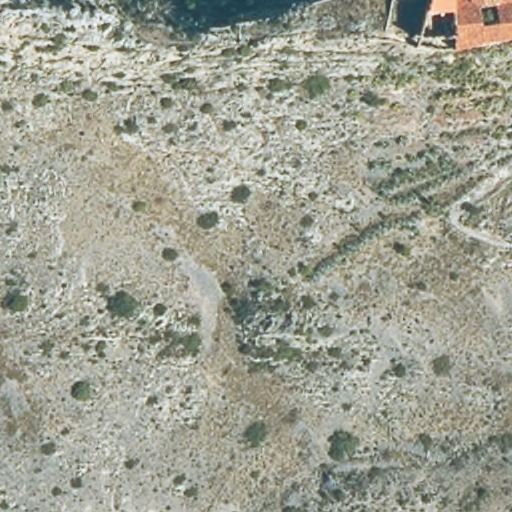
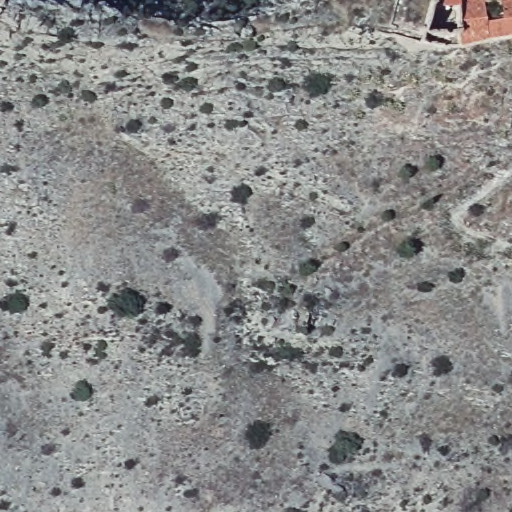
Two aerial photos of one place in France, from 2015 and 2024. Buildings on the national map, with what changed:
unchanged [(512,38),(452,48),(447,16),(427,12),(428,0),(512,0),(512,38)]

